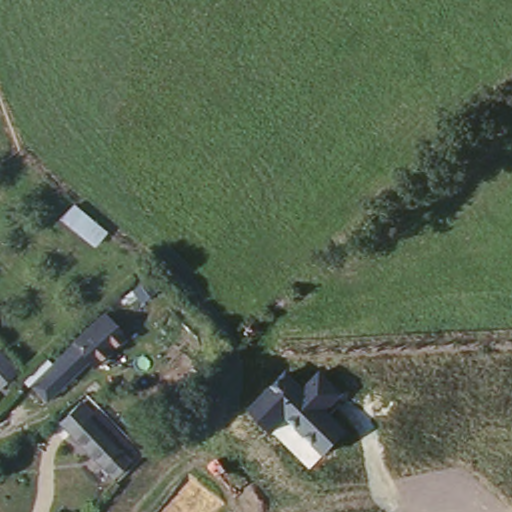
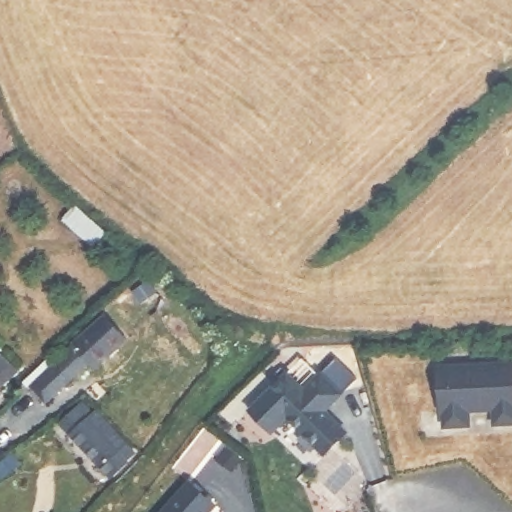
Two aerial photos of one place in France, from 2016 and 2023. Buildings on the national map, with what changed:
unchanged [(96,249),(62,222),(76,205),(110,233),(96,249)]
unchanged [(83,332),(126,295),(141,312),(97,346),(83,332)]
unchanged [(87,357),(88,362),(44,400),(30,386),(75,346),(87,357)]
unchanged [(0,380),(0,352),(14,366),(0,380)]
new [(494,365),(512,364),(512,424),(494,426),(493,410),(468,411),(468,427),(443,427),(443,412),(440,412),(438,367),(464,367),(494,365)]
unchanged [(284,372),(303,387),(319,372),(344,396),(328,412),(347,433),(310,470),(246,410),(284,372)]
unchanged [(106,390),(98,397),(90,389),(99,381),(106,390)]
unchanged [(93,417),(96,415),(125,447),(118,455),(125,465),(111,479),(106,475),(105,477),(59,424),(81,404),(93,417)]
new [(210,505),(205,512),(160,512),(185,483),(210,505)]

